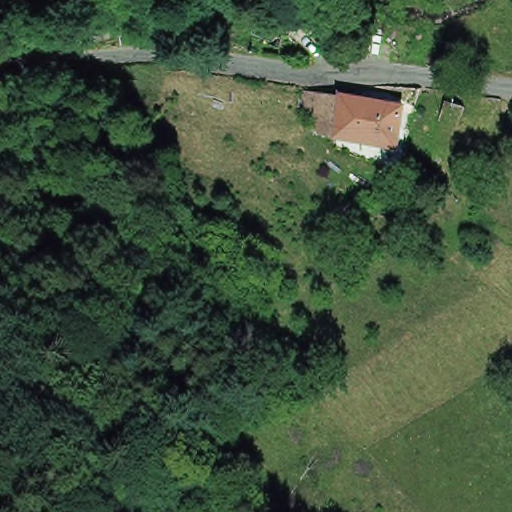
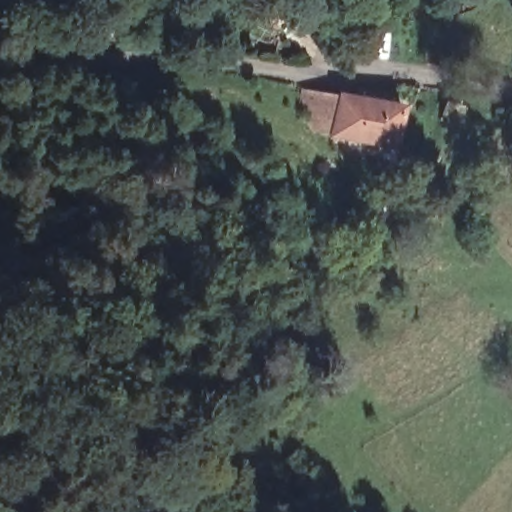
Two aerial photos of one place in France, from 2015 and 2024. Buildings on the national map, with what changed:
unchanged [(332,136),(313,132),(299,117),(303,93),(338,99),(332,136)]
unchanged [(339,97),(400,107),(393,148),(331,137),(332,136),(338,99),(339,97)]
unchanged [(446,101),(464,108),(457,128),(438,121),(446,101)]

